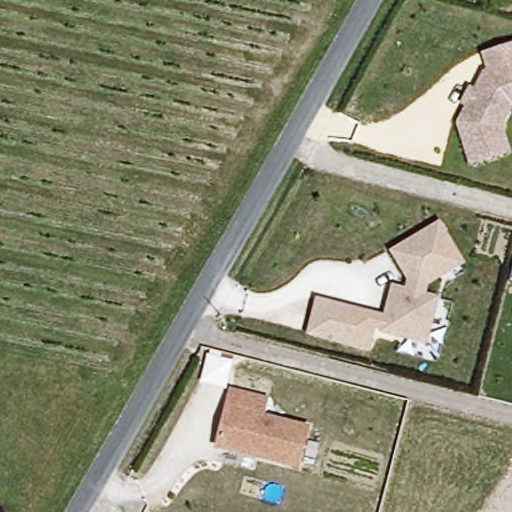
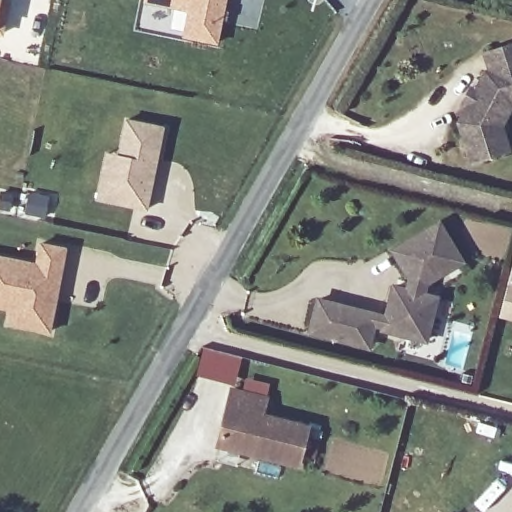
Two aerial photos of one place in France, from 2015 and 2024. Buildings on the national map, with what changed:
new [(0,8),(0,0),(2,0),(0,8)]
new [(144,0),(225,0),(216,43),(185,37),(190,11),(144,2),(144,0)]
unchanged [(465,102),(456,98),(465,81),(471,85),(483,66),(480,51),(512,42),(512,108),(503,123),(512,150),(469,163),(455,121),(465,102)]
new [(118,158),(125,122),(162,129),(146,210),(96,200),(101,179),(106,155),(118,158)]
unchanged [(383,312),(390,281),(406,284),(407,277),(389,248),(437,218),(465,261),(427,284),(427,291),(440,294),(428,343),(374,331),(370,349),(306,332),(316,294),(383,312)]
new [(36,263),(40,243),(65,247),(50,329),(9,322),(11,307),(0,305),(0,257),(36,263)]
new [(512,263),(512,319),(498,315),(512,263)]
unchanged [(305,461),(303,464),(222,443),(223,440),(236,389),(271,398),(267,414),(313,426),(305,461)]

